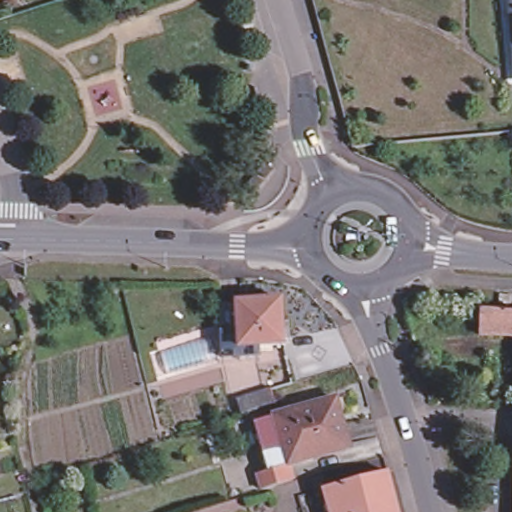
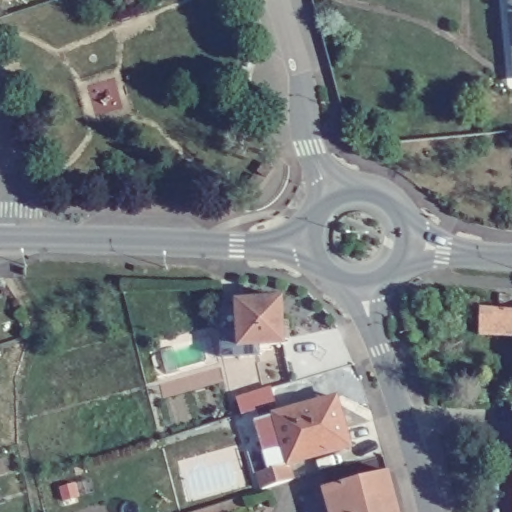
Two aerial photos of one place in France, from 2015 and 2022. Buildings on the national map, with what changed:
unchanged [(512,294),(512,306),(502,305),(502,294),(512,294)]
unchanged [(226,360),(224,350),(221,315),(221,305),(239,304),(283,300),(286,346),(262,348),(263,357),(226,360)]
unchanged [(507,334),(482,332),(483,307),(508,309),(512,309),(512,334),(507,334)]
unchanged [(271,413),(236,424),(231,408),(267,398),(271,413)]
unchanged [(276,415),(336,399),(349,448),(290,464),(276,415)]
unchanged [(269,469),(256,421),(276,415),(290,464),(269,469)]
unchanged [(296,500),(383,472),(395,512),(300,512),(296,500)]

